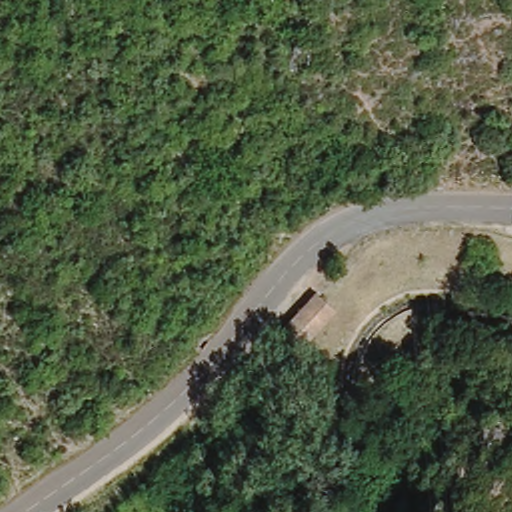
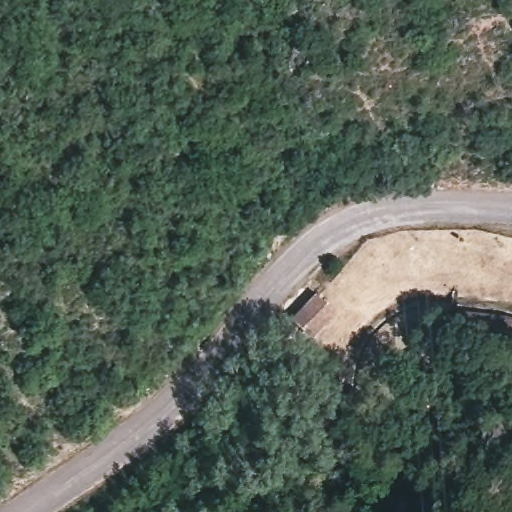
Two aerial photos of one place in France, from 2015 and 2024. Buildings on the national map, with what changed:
unchanged [(333,312),(308,342),(288,324),(311,296),(333,312)]

